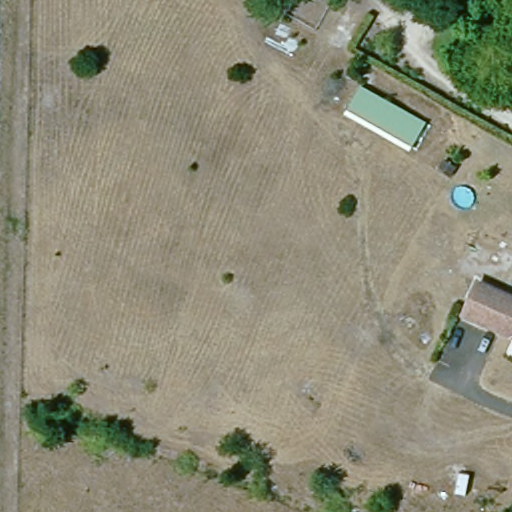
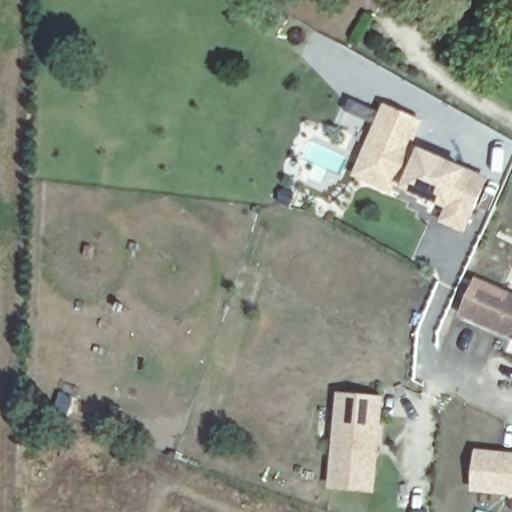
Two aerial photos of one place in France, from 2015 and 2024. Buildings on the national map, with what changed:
new [(446,209),(397,186),(394,194),(352,177),(385,104),(425,122),(415,147),(490,179),(467,234),(440,223),(446,209)]
unchanged [(512,294),(512,333),(459,302),(475,274),(512,294)]
new [(385,398),(376,495),(330,489),(338,395),(385,398)]
new [(477,450),(512,453),(512,496),(472,492),(477,450)]

